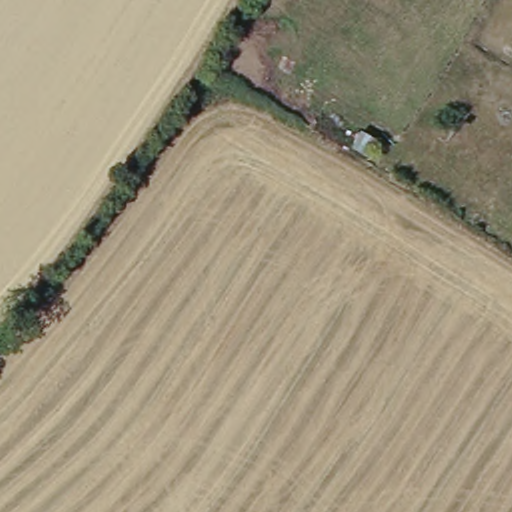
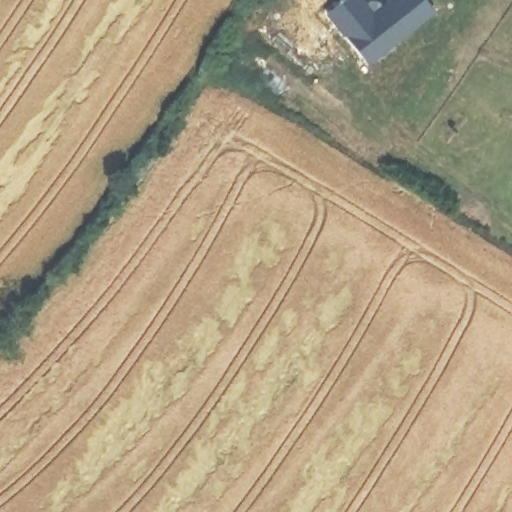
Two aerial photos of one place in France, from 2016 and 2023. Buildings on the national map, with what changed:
new [(373,18),(396,0),(426,0),(437,15),(365,73),(321,11),(336,0),(361,0),(373,18)]

